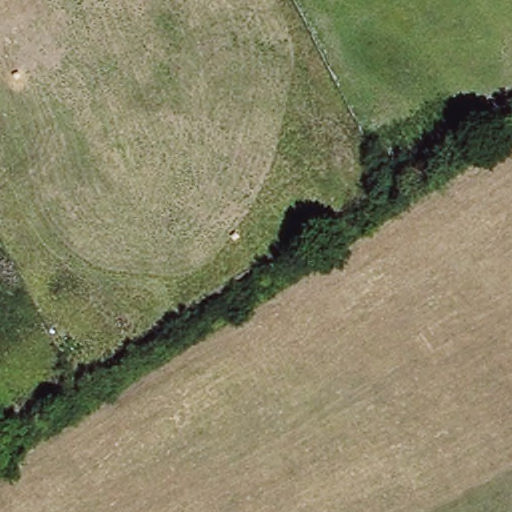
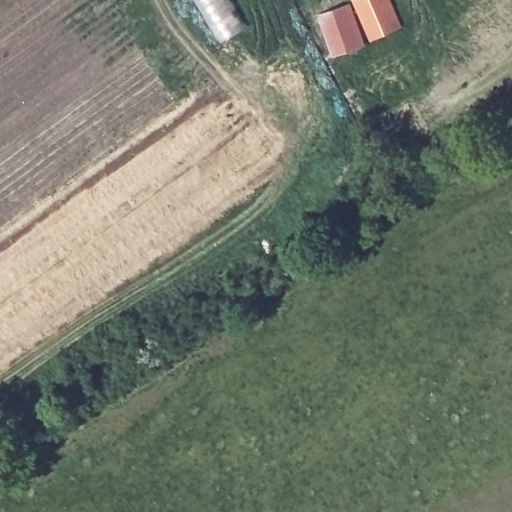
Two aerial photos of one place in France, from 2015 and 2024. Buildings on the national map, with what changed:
new [(402,30),(365,45),(351,2),(355,0),(390,0),(402,30)]
new [(351,2),(365,45),(331,58),(316,15),(351,2)]

